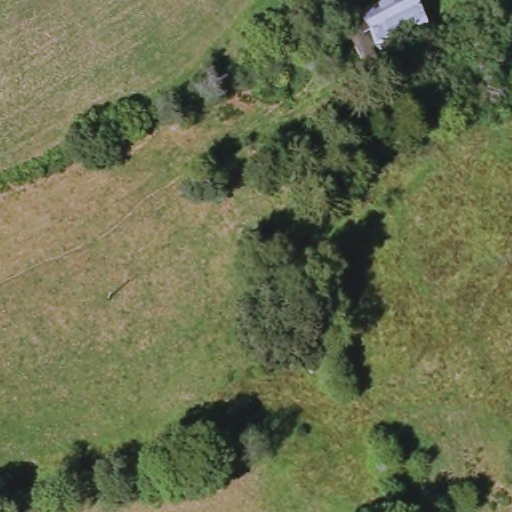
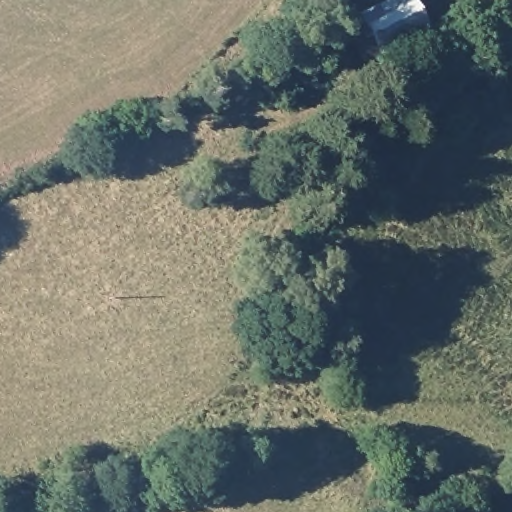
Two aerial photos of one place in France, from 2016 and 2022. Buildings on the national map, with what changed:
unchanged [(386,0),(421,0),(436,26),(368,63),(346,22),(386,0)]

